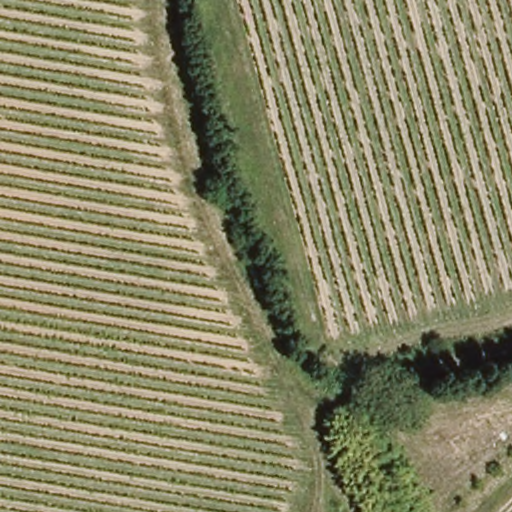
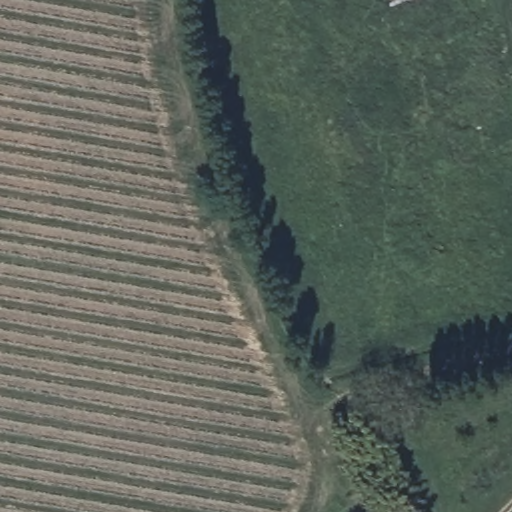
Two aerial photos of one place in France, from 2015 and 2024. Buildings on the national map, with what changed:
[]

